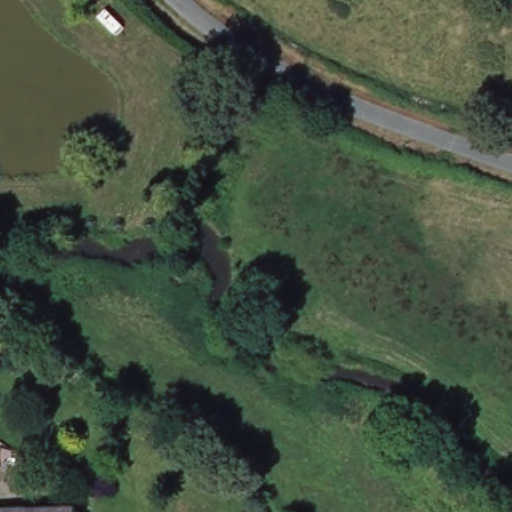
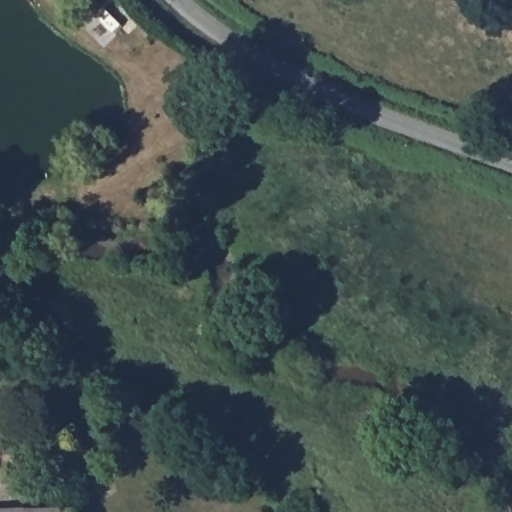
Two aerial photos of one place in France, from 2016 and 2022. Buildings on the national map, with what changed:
unchanged [(70,512),(17,512),(69,507),(70,512)]

